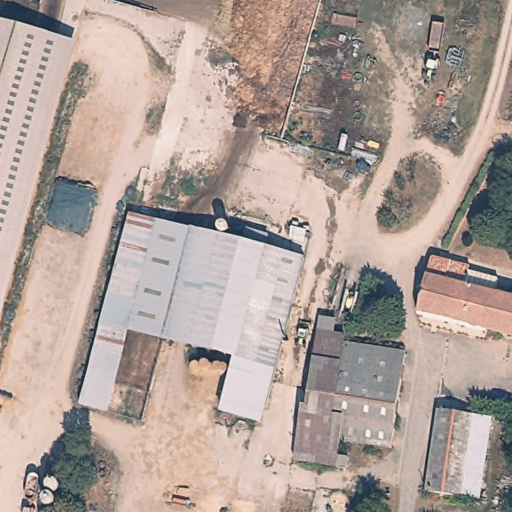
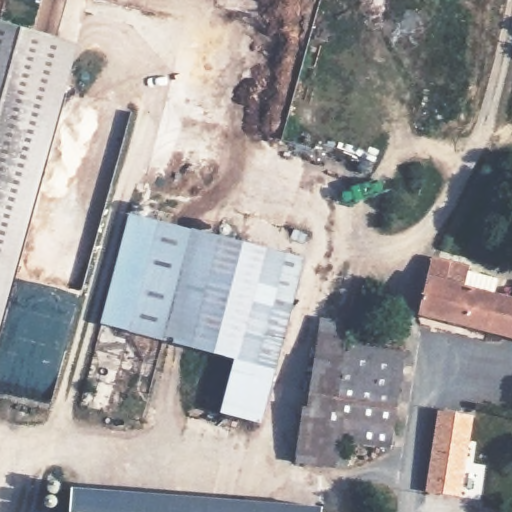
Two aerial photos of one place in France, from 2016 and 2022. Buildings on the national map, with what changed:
unchanged [(0,329),(0,22),(78,43),(0,329)]
unchanged [(121,359),(93,350),(133,215),(266,254),(233,363),(129,331),(121,359)]
unchanged [(305,266),(258,426),(219,414),(233,363),(266,254),(305,266)]
unchanged [(430,267),(453,271),(468,275),(464,293),(512,306),(512,341),(420,317),(430,267)]
unchanged [(329,437),(336,439),(331,471),(289,464),(298,410),(304,411),(318,334),(345,337),(344,345),(329,437)]
unchanged [(329,437),(344,345),(408,359),(392,446),(385,448),(336,439),(329,437)]
unchanged [(449,497),(433,494),(449,416),(485,424),(469,501),(449,497)]
new [(321,512),(72,512),(72,486),(321,505),(321,512)]

